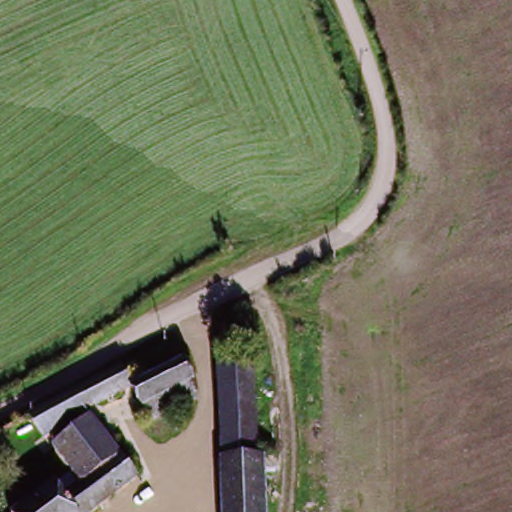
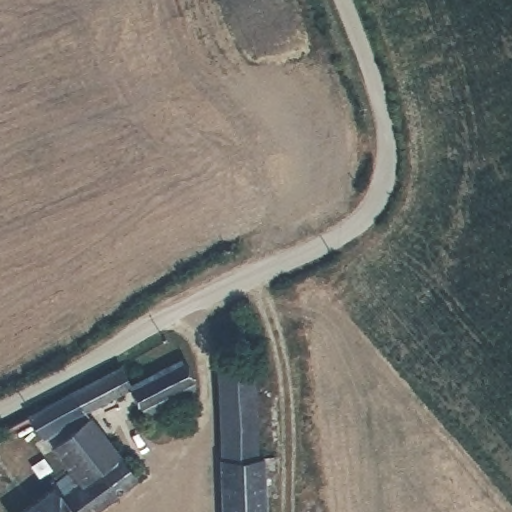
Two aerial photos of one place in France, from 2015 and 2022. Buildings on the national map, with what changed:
unchanged [(168,353),(177,369),(127,397),(97,413),(88,398),(168,353)]
unchanged [(249,363),(251,464),(261,466),(261,512),(218,512),(217,364),(249,363)]
unchanged [(188,390),(138,417),(127,397),(177,369),(188,390)]
unchanged [(196,408),(146,434),(138,417),(188,390),(196,408)]
unchanged [(45,496),(76,475),(59,446),(98,421),(138,485),(101,512),(34,512),(48,501),(45,496)]

